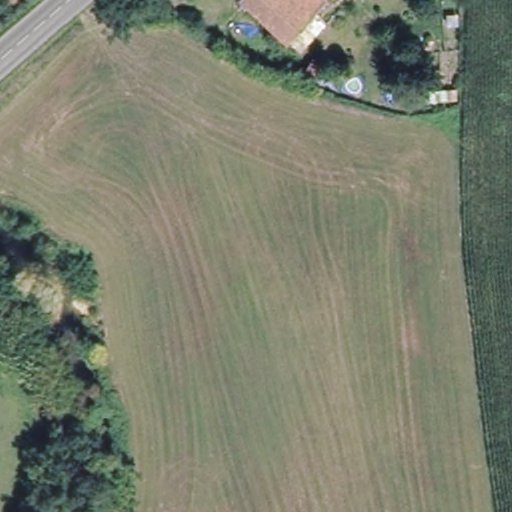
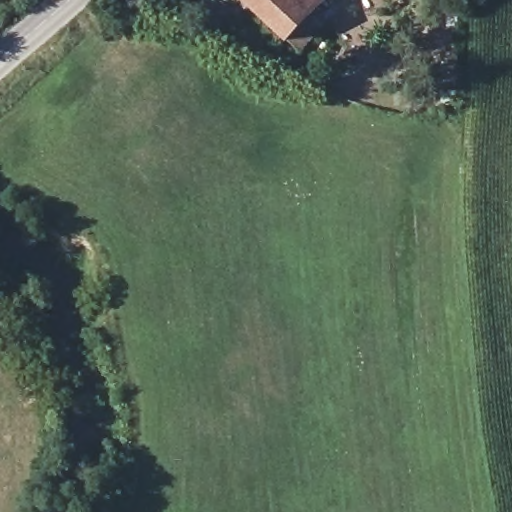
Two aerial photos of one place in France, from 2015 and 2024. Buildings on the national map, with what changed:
unchanged [(246,0),(332,0),(282,45),(246,0)]

